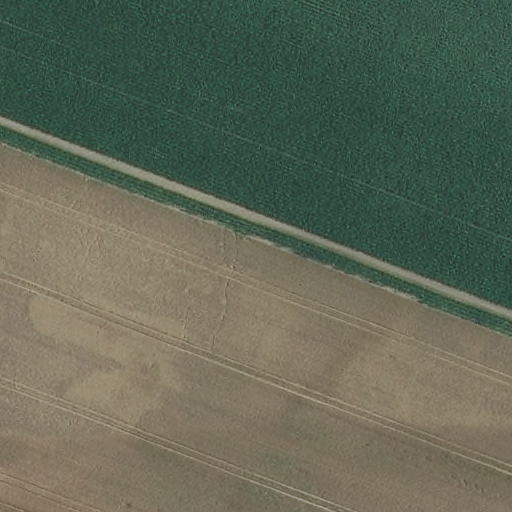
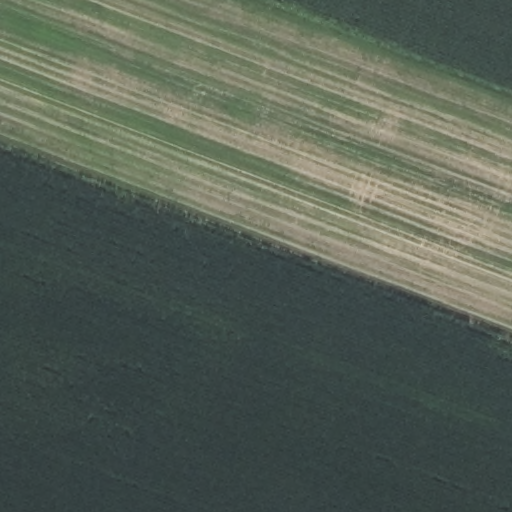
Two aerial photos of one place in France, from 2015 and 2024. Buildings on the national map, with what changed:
[]

